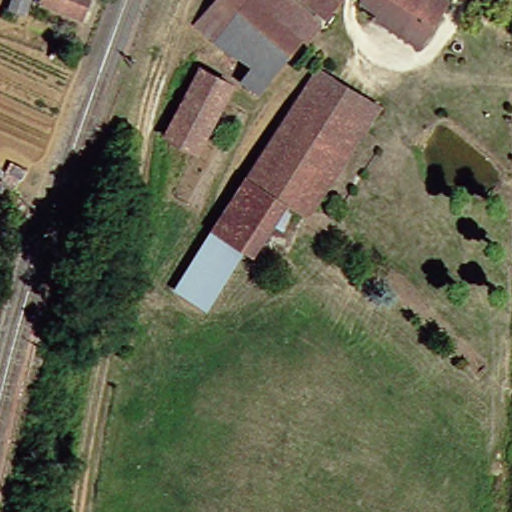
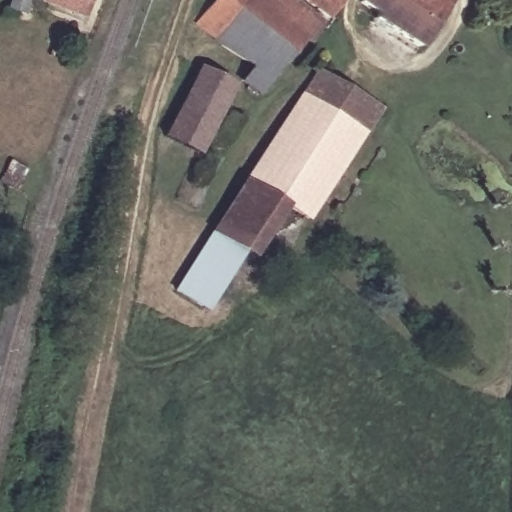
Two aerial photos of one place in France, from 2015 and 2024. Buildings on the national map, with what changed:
unchanged [(6,0),(26,0),(20,12),(4,4),(6,0)]
unchanged [(77,15),(44,3),(45,0),(84,0),(77,15)]
unchanged [(290,1),(323,25),(312,43),(302,38),(262,91),(245,79),(253,69),(195,28),(215,0),(269,0),(273,2),(284,9),(290,1)]
unchanged [(328,20),(300,0),(343,0),(328,20)]
unchanged [(445,0),(418,44),(374,21),(378,14),(361,3),(363,0),(444,0),(445,0)]
unchanged [(230,89),(197,155),(165,140),(200,75),(230,89)]
unchanged [(322,113),(360,138),(307,220),(272,203),(242,188),(312,79),(335,92),(322,113)]
unchanged [(374,116),(360,138),(322,113),(335,92),(374,116)]
unchanged [(272,203),(240,252),(212,235),(242,188),(272,203)]
unchanged [(208,237),(240,256),(204,314),(172,293),(208,237)]

